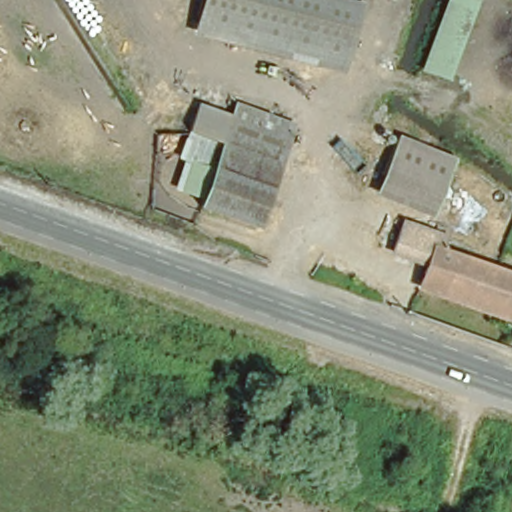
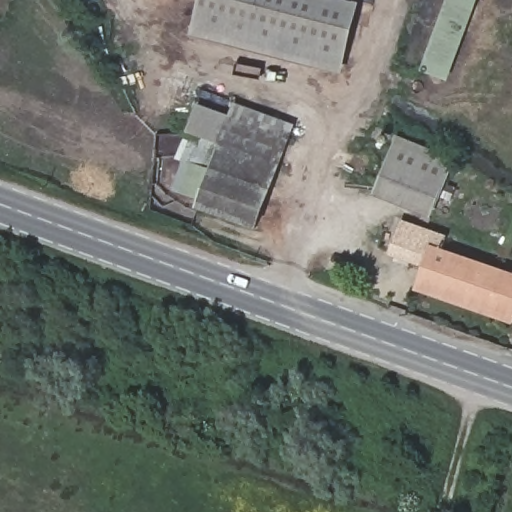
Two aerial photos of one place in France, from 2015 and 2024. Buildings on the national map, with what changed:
unchanged [(193,37),(201,0),(341,0),(358,4),(341,74),(193,37)]
unchanged [(359,0),(358,4),(341,0),(359,0)]
unchanged [(420,72),(447,0),(479,0),(450,82),(420,72)]
unchanged [(301,124),(258,234),(195,210),(209,175),(178,161),(190,135),(219,149),(237,102),(301,124)]
unchanged [(397,136),(455,155),(434,217),(374,195),(397,136)]
unchanged [(442,250),(512,274),(512,326),(414,292),(424,269),(390,255),(401,220),(447,237),(442,250)]

